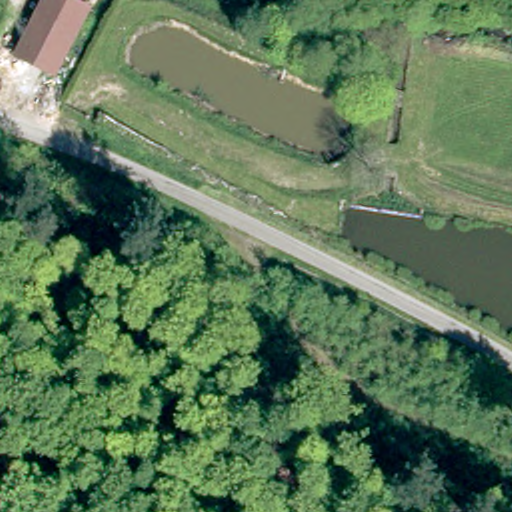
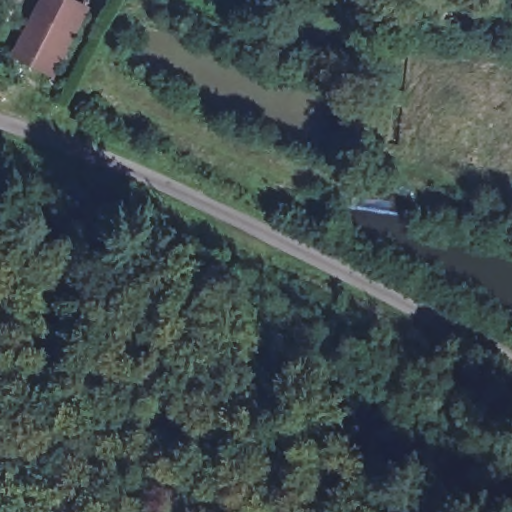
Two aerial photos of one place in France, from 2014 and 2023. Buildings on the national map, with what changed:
unchanged [(56,78),(14,56),(44,0),(79,0),(94,7),(56,78)]

